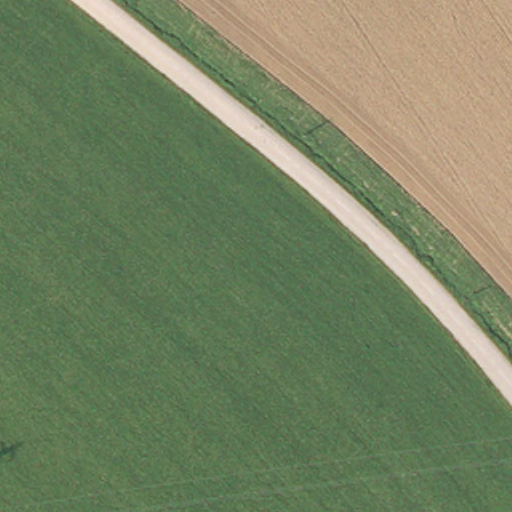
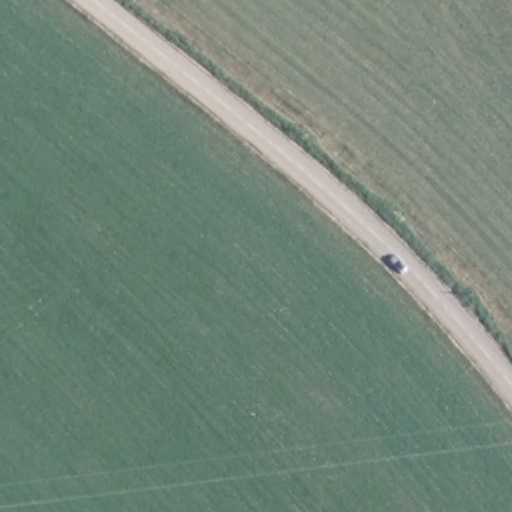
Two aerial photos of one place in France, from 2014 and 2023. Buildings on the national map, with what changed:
[]

